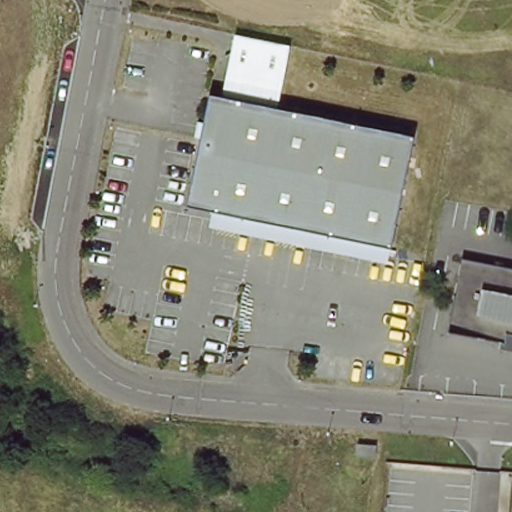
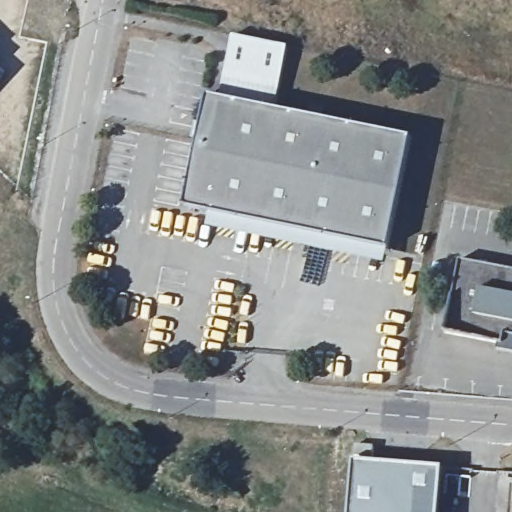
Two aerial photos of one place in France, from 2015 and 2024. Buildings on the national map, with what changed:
unchanged [(187,206),(211,96),(223,99),(234,35),(290,45),(279,112),(414,139),(390,250),(187,206)]
unchanged [(496,342),(442,331),(456,257),(512,268),(512,350),(495,347),(496,342)]
new [(354,461),(444,470),(441,512),(350,512),(354,461)]

